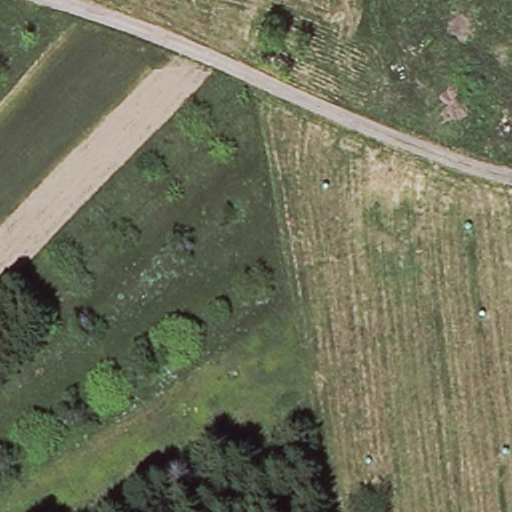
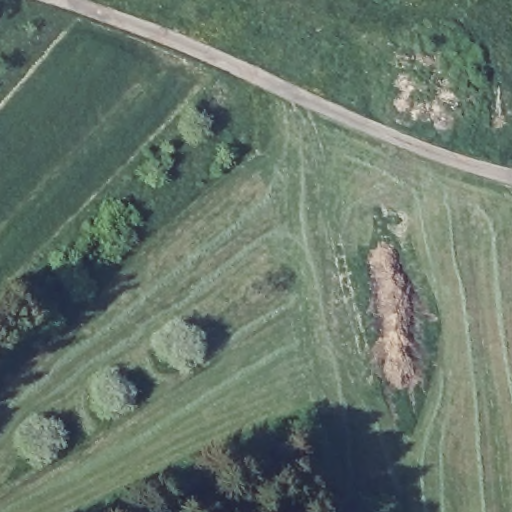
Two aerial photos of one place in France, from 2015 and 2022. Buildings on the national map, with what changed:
[]

